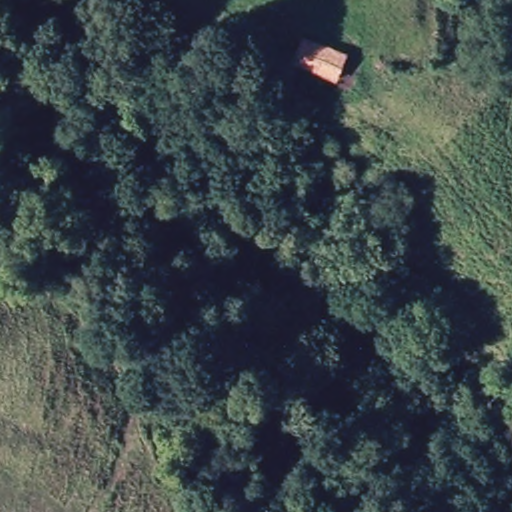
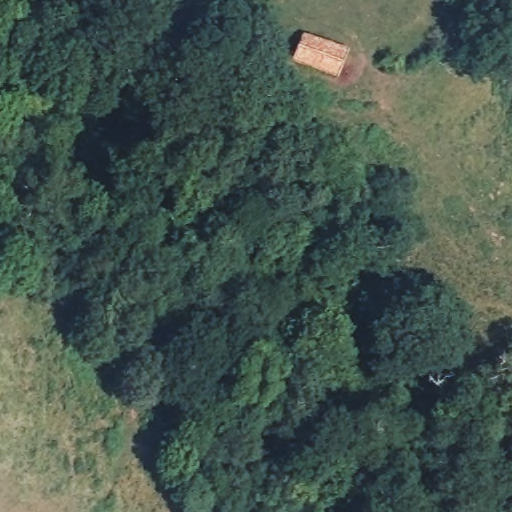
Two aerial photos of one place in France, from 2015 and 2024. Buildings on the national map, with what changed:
unchanged [(293,55),(302,29),(348,47),(339,72),(293,55)]

